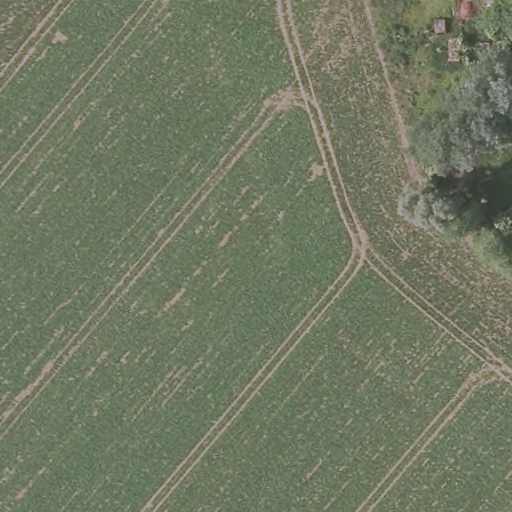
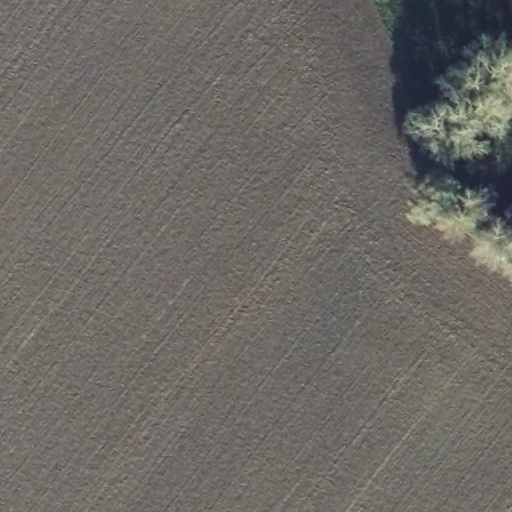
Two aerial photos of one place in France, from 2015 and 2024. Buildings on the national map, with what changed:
unchanged [(512,236),(501,227),(512,214),(512,236)]

